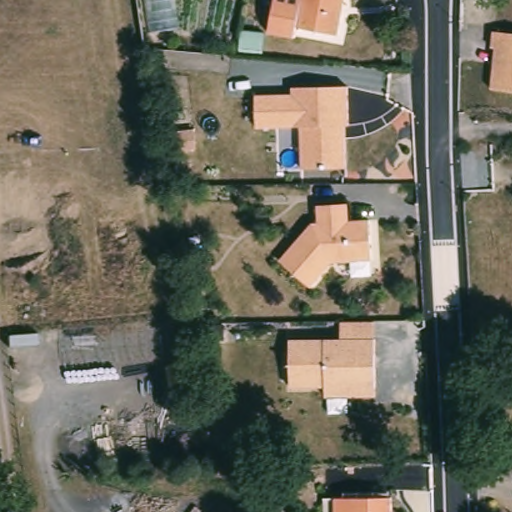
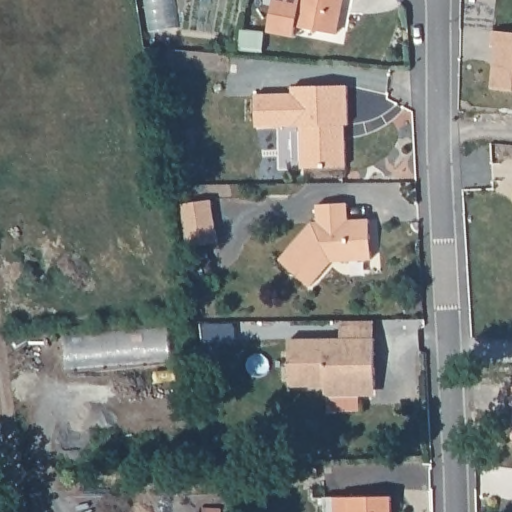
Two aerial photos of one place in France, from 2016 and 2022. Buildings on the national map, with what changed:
unchanged [(335,36),(293,28),(299,0),(341,0),(335,36)]
unchanged [(488,89),(490,70),(495,70),(497,49),(490,48),(490,32),(512,34),(512,92),(488,89)]
unchanged [(345,169),(300,170),(299,127),(255,128),(254,96),(291,95),(290,88),(345,87),(346,126),(343,126),(343,143),(345,169)]
new [(211,200),(217,242),(187,246),(181,204),(211,200)]
unchanged [(313,288),(283,261),(315,224),(322,224),(321,206),(351,205),(352,222),(372,221),(375,261),(347,263),(335,263),(313,288)]
unchanged [(219,257),(220,268),(211,269),(210,258),(219,257)]
unchanged [(325,397),(324,385),(290,385),(290,338),(375,338),(375,396),(325,397)]
unchanged [(390,499),(391,512),(323,512),(322,500),(390,499)]

